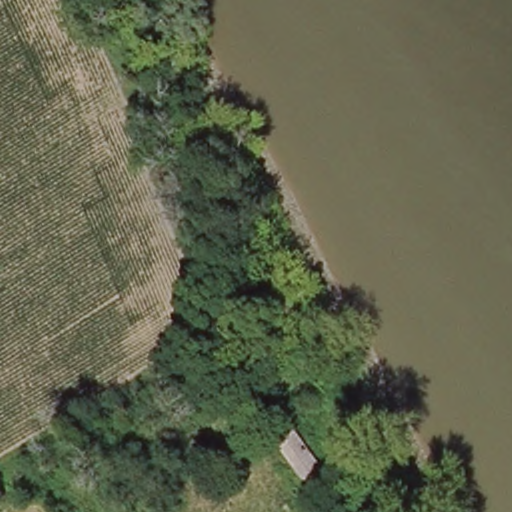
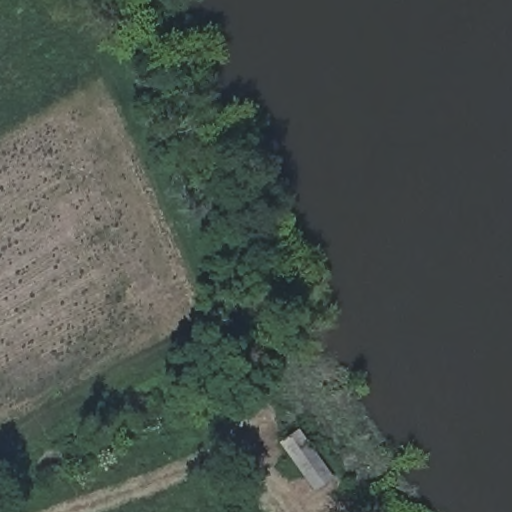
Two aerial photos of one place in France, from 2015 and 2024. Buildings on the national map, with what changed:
unchanged [(315,487),(306,475),(282,444),(298,434),(322,464),(330,474),(315,487)]

